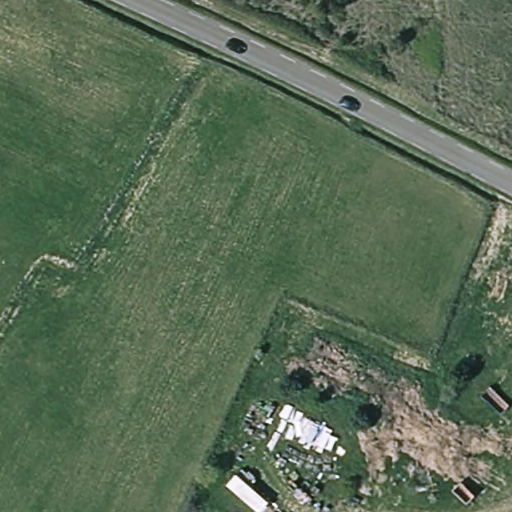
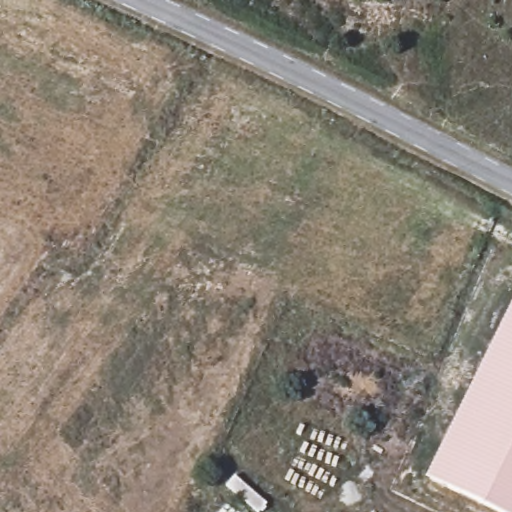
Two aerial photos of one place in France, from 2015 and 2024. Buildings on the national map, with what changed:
new [(425,478),(512,302),(512,512),(493,512),(425,478)]

